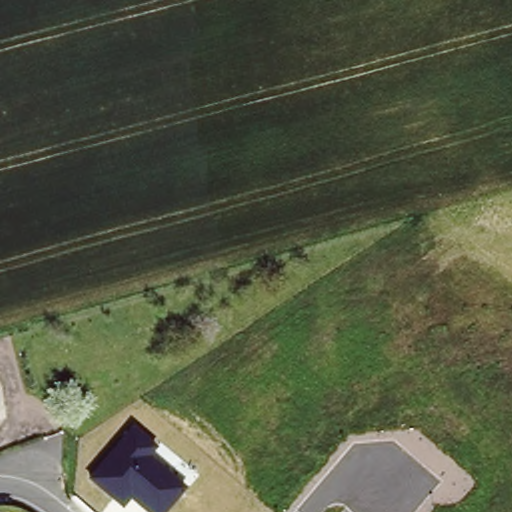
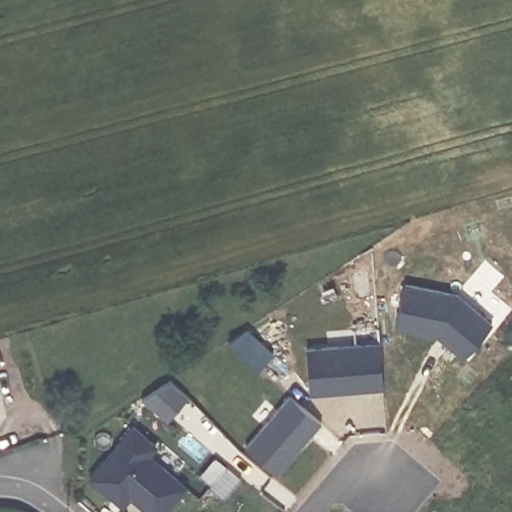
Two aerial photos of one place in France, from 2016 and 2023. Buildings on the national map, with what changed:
new [(463,358),(440,336),(396,327),(405,282),(458,291),(495,321),(463,358)]
new [(385,387),(310,394),(306,345),(381,340),(385,387)]
new [(168,420),(140,400),(172,379),(190,395),(168,420)]
new [(278,472),(247,445),(292,394),(324,421),(278,472)]
unchanged [(130,498),(123,506),(87,477),(132,424),(158,443),(150,455),(188,485),(166,512),(146,512),(130,498)]

